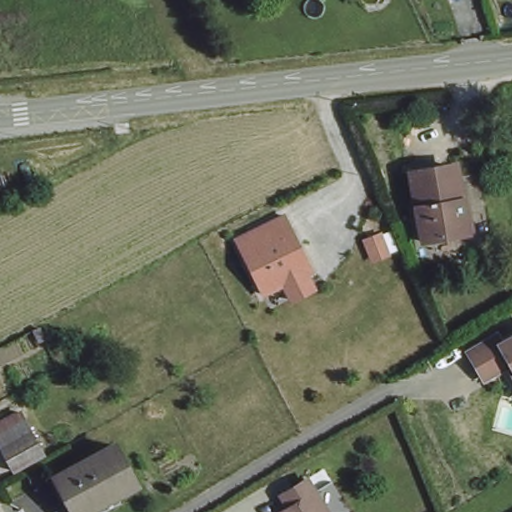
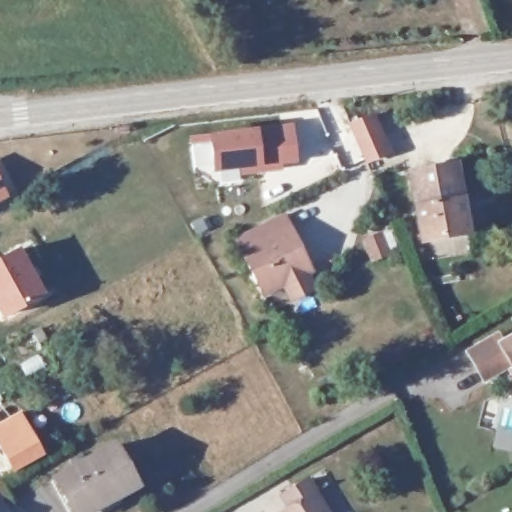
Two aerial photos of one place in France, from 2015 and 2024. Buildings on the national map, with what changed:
new [(389,153),(365,164),(347,123),(373,113),(389,153)]
new [(297,161),(281,165),(281,172),(241,177),(240,169),(213,173),(208,134),(258,127),(292,124),(297,161)]
unchanged [(459,180),(468,179),(477,232),(429,240),(417,170),(456,163),(459,180)]
new [(0,198),(0,179),(8,194),(0,198)]
unchanged [(293,294),(284,278),(263,290),(233,238),(280,211),(290,228),(291,228),(311,262),(305,266),(314,282),(293,294)]
unchanged [(376,234),(384,252),(371,258),(362,240),(376,234)]
new [(20,247),(45,293),(0,321),(0,320),(0,256),(20,247)]
unchanged [(44,341),(37,344),(32,333),(38,329),(44,341)]
unchanged [(479,374),(463,347),(492,331),(496,338),(512,329),(512,369),(506,359),(479,374)]
unchanged [(512,382),(512,389),(511,389),(512,382)]
unchanged [(38,454),(12,470),(0,449),(0,420),(15,412),(38,454)]
unchanged [(137,487),(93,512),(75,512),(56,480),(113,447),(137,487)]
unchanged [(275,509),(285,503),(278,490),(303,473),(310,486),(327,512),(278,512),(275,509)]

